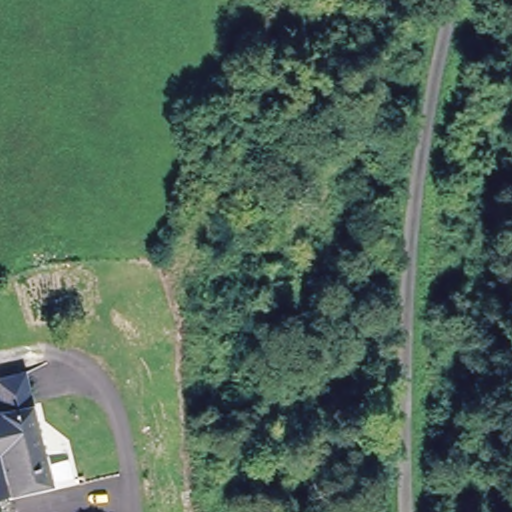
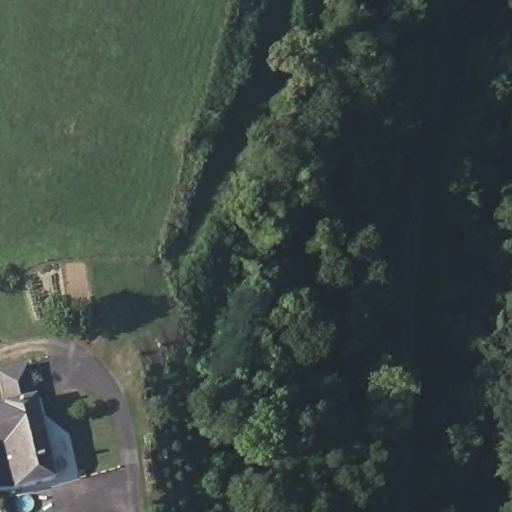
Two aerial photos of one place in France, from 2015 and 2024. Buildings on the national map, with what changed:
unchanged [(0,404),(3,403),(0,391),(0,370),(21,364),(46,474),(0,486),(0,404)]

